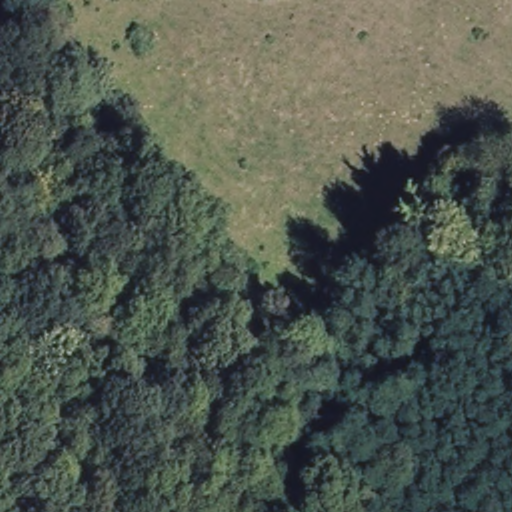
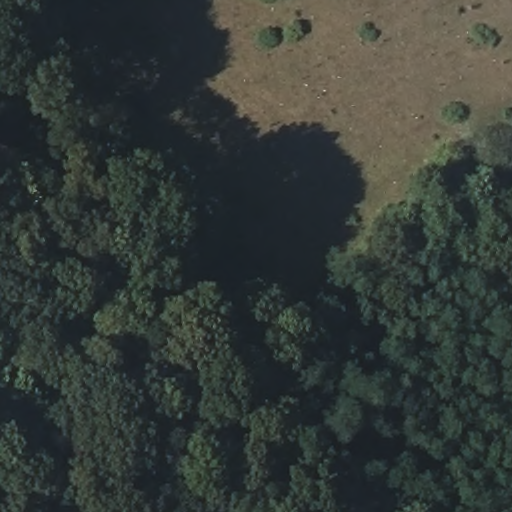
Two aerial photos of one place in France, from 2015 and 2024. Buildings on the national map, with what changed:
[]

